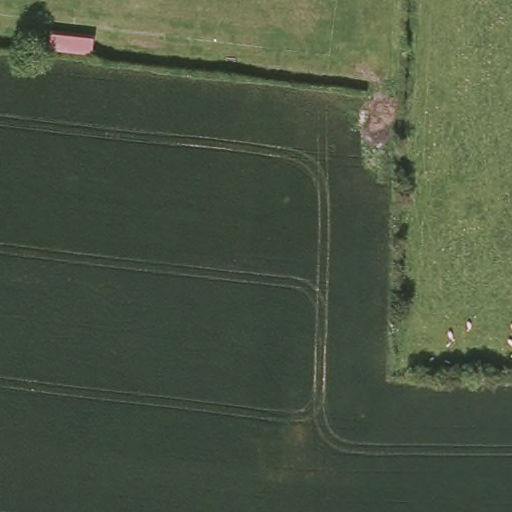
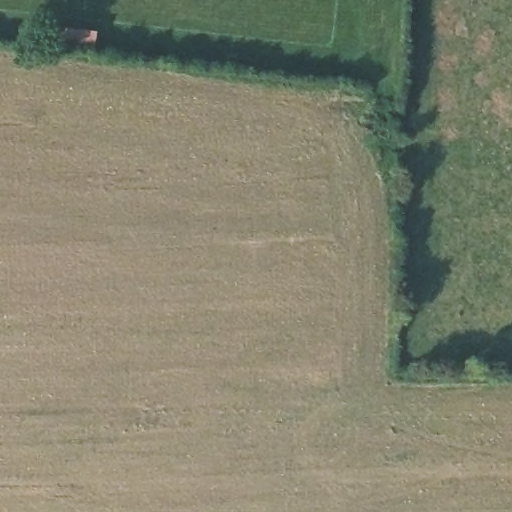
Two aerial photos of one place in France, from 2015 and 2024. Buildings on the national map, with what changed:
unchanged [(95,54),(48,49),(50,30),(98,37),(95,54)]

